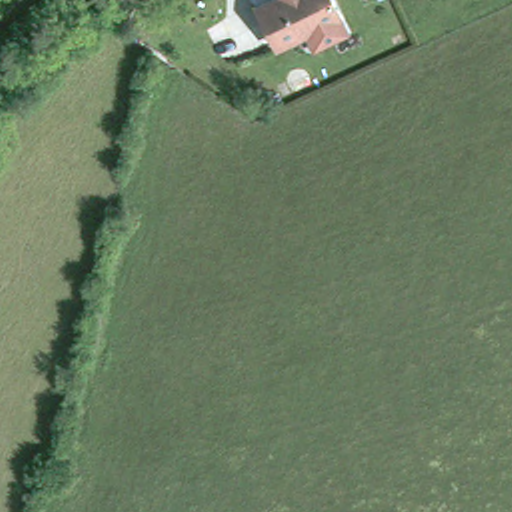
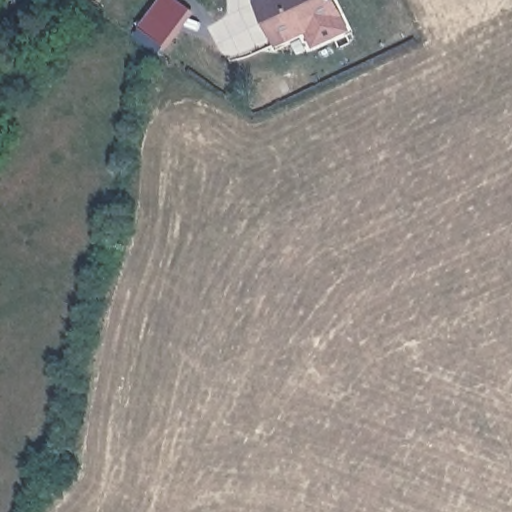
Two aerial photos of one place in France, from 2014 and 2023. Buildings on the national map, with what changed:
new [(196,13),(169,49),(141,29),(162,0),(179,0),(196,13)]
unchanged [(338,9),(275,41),(254,1),(257,0),(333,0),(338,9)]

